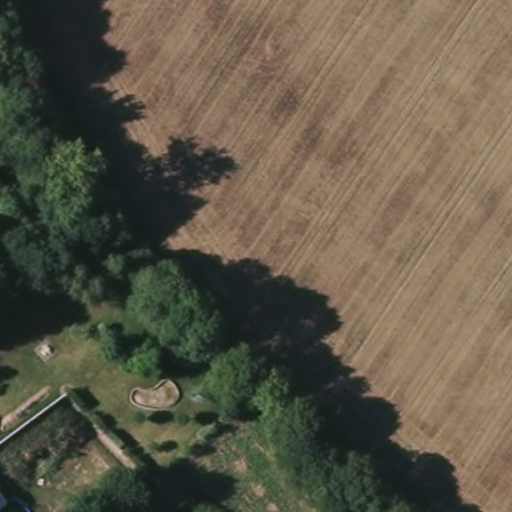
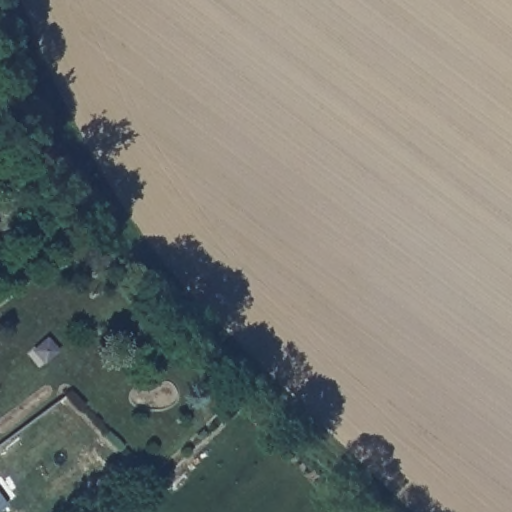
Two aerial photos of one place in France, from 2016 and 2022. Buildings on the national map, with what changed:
unchanged [(8,89),(12,87),(17,97),(2,103),(0,98),(0,81),(3,79),(8,89)]
unchanged [(6,512),(0,512),(0,497),(9,510),(6,512)]

